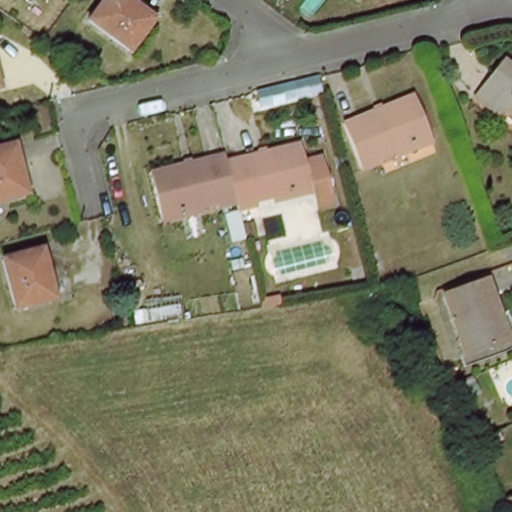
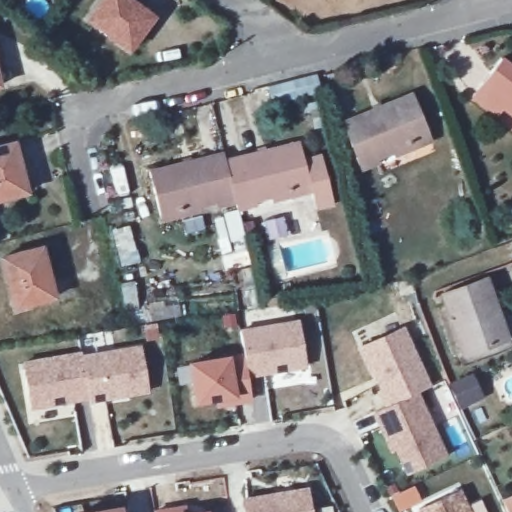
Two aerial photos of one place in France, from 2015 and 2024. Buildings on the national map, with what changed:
unchanged [(158,15),(130,51),(88,21),(104,0),(139,0),(158,15)]
unchanged [(512,60),(512,113),(506,109),(499,120),(474,97),(505,55),(512,60)]
unchanged [(0,79),(0,67),(3,78),(0,79)]
unchanged [(418,91),(432,134),(378,152),(379,156),(361,162),(345,115),(418,91)]
unchanged [(0,196),(0,141),(16,136),(30,188),(0,196)]
unchanged [(227,147),(231,157),(299,141),(315,191),(240,210),(231,199),(166,216),(150,167),(227,147)]
unchanged [(60,296),(18,305),(5,255),(46,244),(60,296)]
unchanged [(488,275),(510,336),(466,352),(444,291),(488,275)]
new [(135,325),(133,308),(125,309),(121,282),(136,281),(138,302),(166,300),(166,305),(181,303),(182,317),(158,320),(159,330),(144,332),(143,324),(135,325)]
unchanged [(289,305),(270,307),(267,298),(286,293),(289,305)]
new [(249,377),(252,402),(218,409),(216,401),(196,404),(189,363),(230,356),(245,352),(242,330),(300,322),(310,367),(249,377)]
new [(358,343),(402,326),(429,389),(418,393),(386,407),(358,343)]
new [(138,351),(146,393),(90,402),(82,357),(138,351)]
new [(81,353),(82,357),(90,402),(30,411),(23,363),(81,353)]
new [(407,475),(397,451),(391,453),(374,413),(386,407),(418,393),(447,456),(407,475)]
new [(308,488),(311,512),(245,512),(243,500),(308,488)]
new [(460,490),(470,512),(420,512),(418,508),(460,490)]
new [(122,512),(88,512),(121,507),(122,512)]
new [(209,512),(202,512),(208,511),(209,512)]

